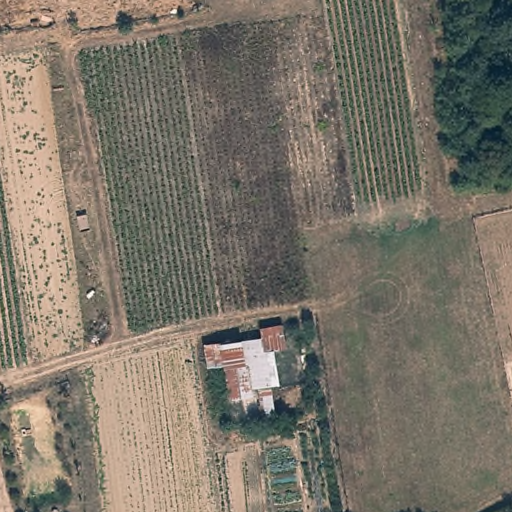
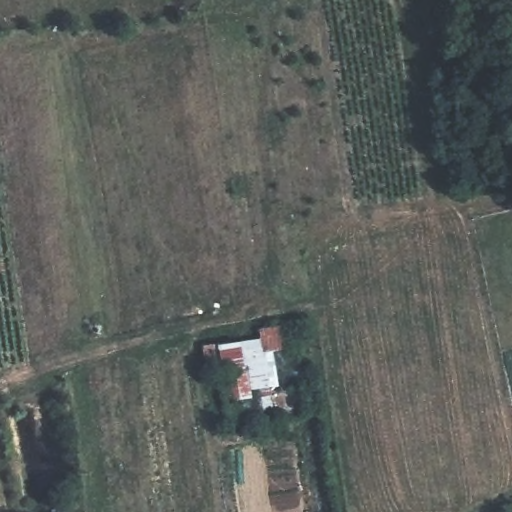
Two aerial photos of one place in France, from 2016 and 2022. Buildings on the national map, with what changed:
unchanged [(226,368),(246,367),(243,342),(285,336),(286,344),(273,351),(279,383),(271,385),(276,417),(262,420),(261,397),(228,400),(226,368)]
unchanged [(246,367),(226,368),(205,370),(201,346),(243,342),(246,367)]

